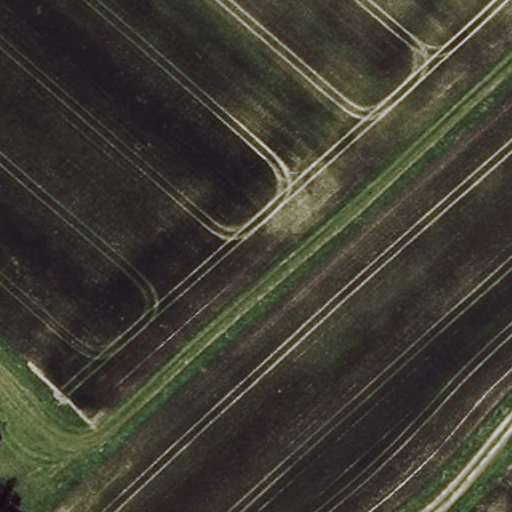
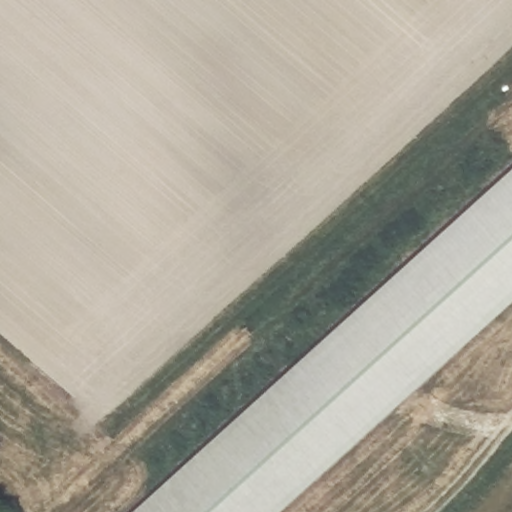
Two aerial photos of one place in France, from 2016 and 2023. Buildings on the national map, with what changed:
new [(281,512),(130,512),(512,169),(512,302),(281,512)]

